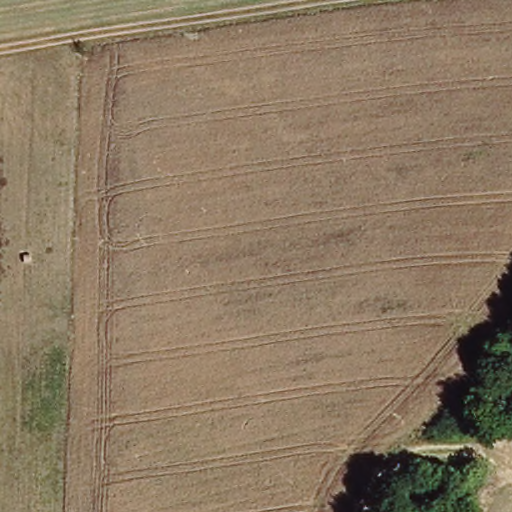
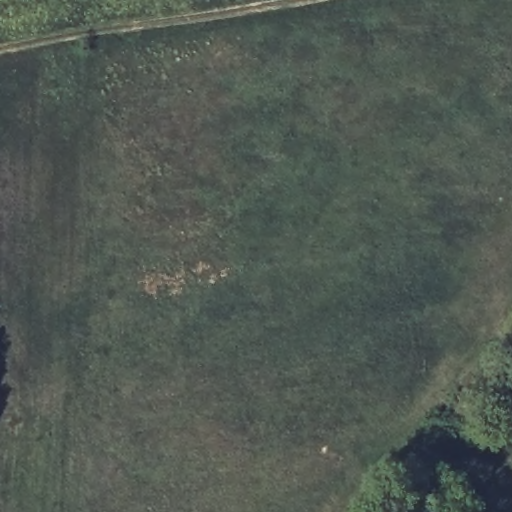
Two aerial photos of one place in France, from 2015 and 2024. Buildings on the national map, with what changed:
unchanged [(512,337),(512,360),(502,352),(512,337)]

